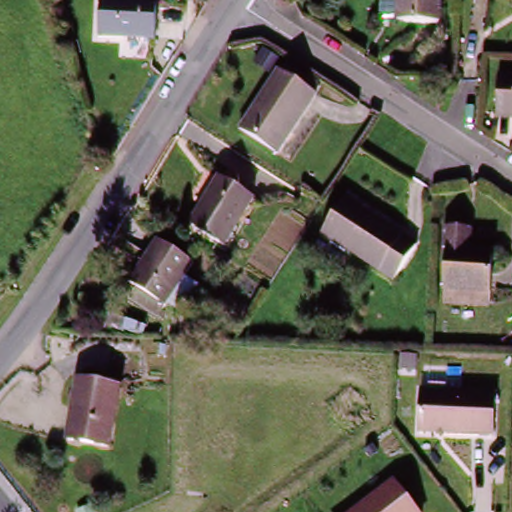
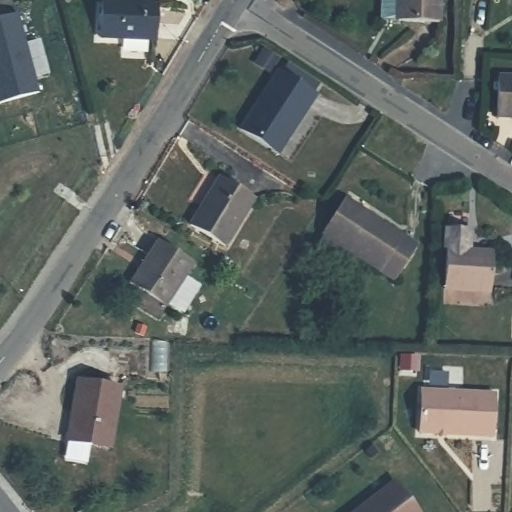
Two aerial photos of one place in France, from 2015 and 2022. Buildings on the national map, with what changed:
unchanged [(154,39),(98,40),(98,1),(154,0),(154,39)]
unchanged [(401,23),(401,0),(441,0),(441,22),(401,23)]
new [(15,12),(38,90),(0,100),(0,16),(15,12)]
unchanged [(281,146),(246,126),(279,66),(281,67),(286,60),(318,78),(314,85),(315,86),(281,146)]
unchanged [(499,82),(512,83),(512,117),(498,116),(499,82)]
unchanged [(220,177),(253,197),(223,247),(189,227),(220,177)]
unchanged [(395,277),(381,267),(354,249),(348,257),(321,240),(327,231),(323,229),(345,195),(403,233),(417,242),(395,277)]
unchanged [(491,250),(487,290),(443,285),(447,246),(491,250)]
unchanged [(153,255),(184,275),(158,318),(126,298),(153,255)]
unchanged [(118,391),(106,447),(68,439),(79,383),(118,391)]
unchanged [(415,390),(484,394),(482,436),(413,433),(415,390)]
unchanged [(396,486),(415,512),(362,512),(396,486)]

